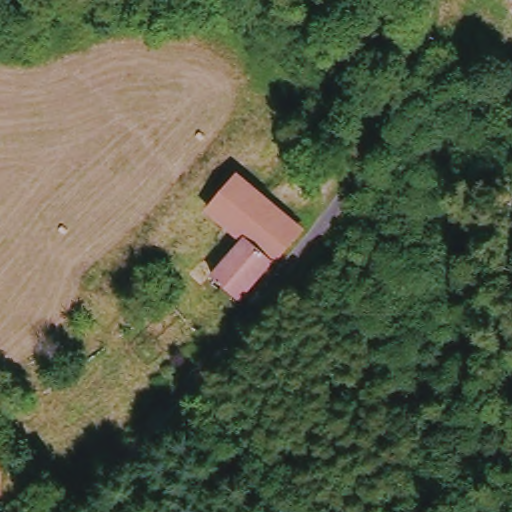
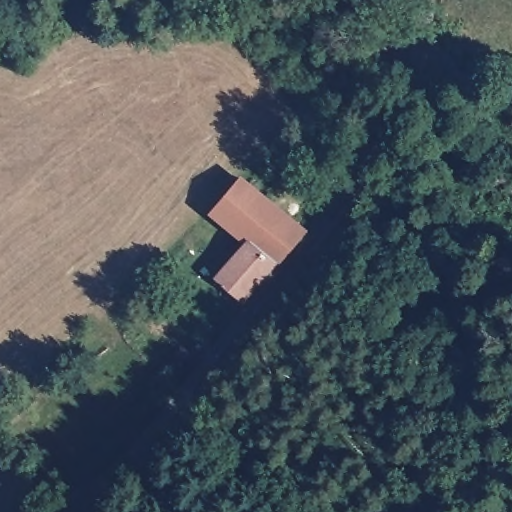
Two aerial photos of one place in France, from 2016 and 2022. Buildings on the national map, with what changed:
unchanged [(217,277),(248,241),(223,219),(216,224),(208,216),(213,209),(240,177),(300,229),(241,300),(217,277)]

